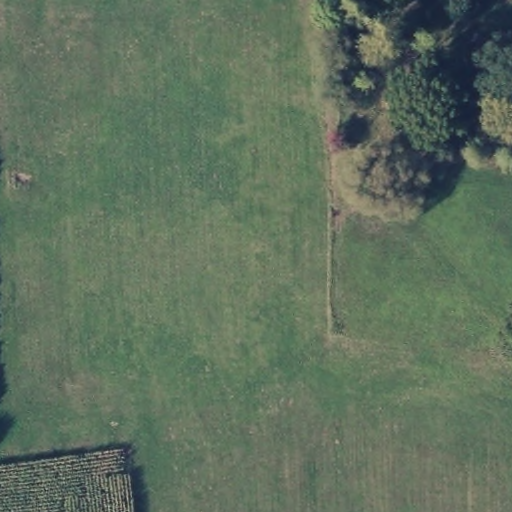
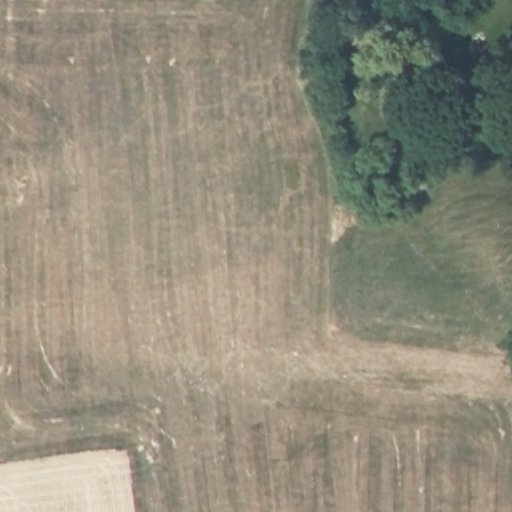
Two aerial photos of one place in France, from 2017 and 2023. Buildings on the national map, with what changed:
[]

